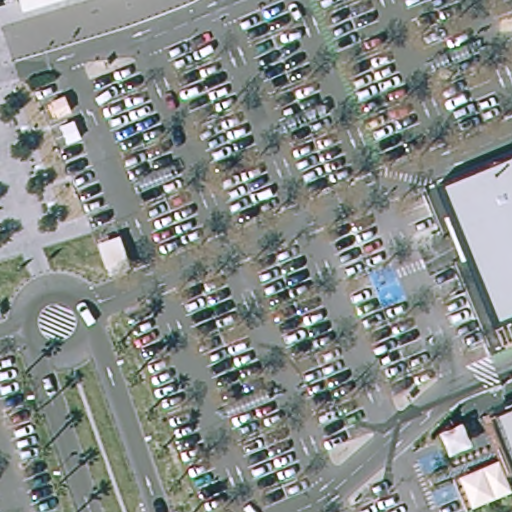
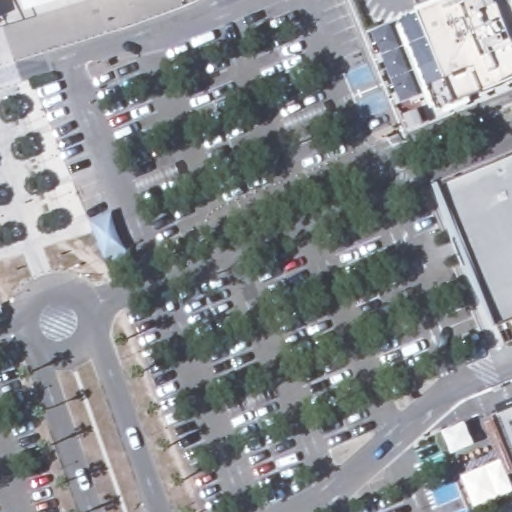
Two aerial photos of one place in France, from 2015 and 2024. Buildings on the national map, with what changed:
new [(390,15),(409,8),(428,0),(508,0),(512,10),(512,75),(448,101),(429,109),(390,15)]
unchanged [(512,155),(512,319),(495,326),(438,185),(512,155)]
new [(495,326),(512,319),(512,341),(495,348),(487,330),(495,326)]
unchanged [(503,401),(512,397),(512,451),(510,446),(494,405),(503,401)]

